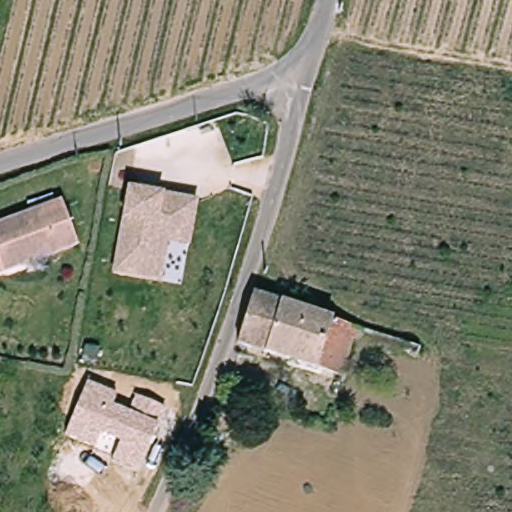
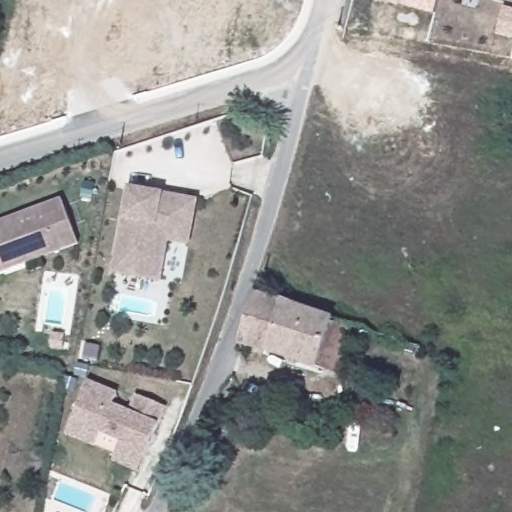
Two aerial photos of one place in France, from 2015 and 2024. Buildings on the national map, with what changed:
new [(399,5),(400,0),(438,0),(435,14),(399,5)]
new [(512,9),(512,38),(495,35),(504,6),(512,9)]
unchanged [(118,272),(133,189),(200,201),(196,225),(192,245),(171,241),(163,281),(118,272)]
unchanged [(66,200),(82,244),(7,271),(0,273),(0,224),(66,200)]
unchanged [(353,331),(336,378),(235,341),(250,295),(353,331)]
unchanged [(113,406),(129,412),(135,395),(164,407),(156,423),(140,472),(114,462),(121,440),(102,433),(96,446),(66,434),(86,381),(118,393),(113,406)]

